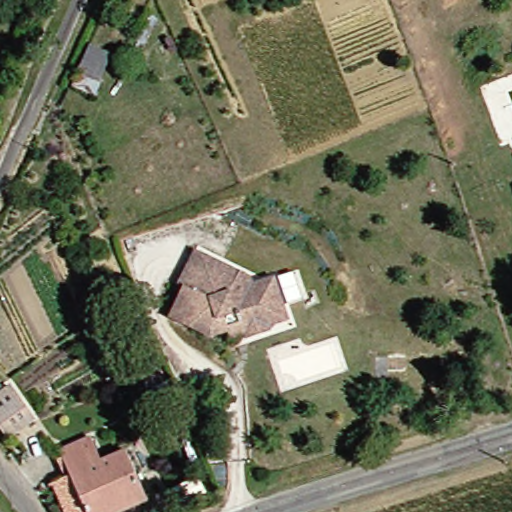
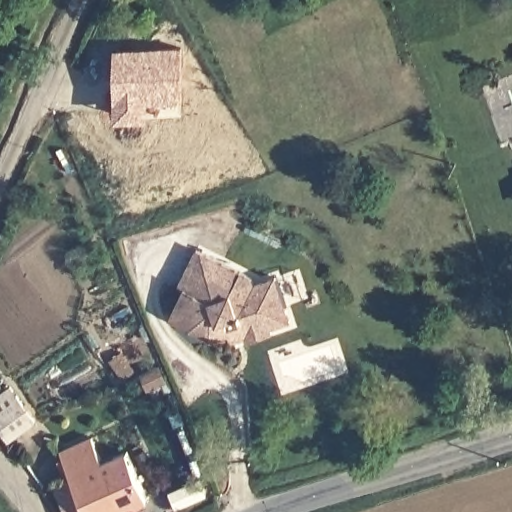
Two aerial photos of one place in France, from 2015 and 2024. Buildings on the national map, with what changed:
new [(185,99),(153,100),(153,118),(118,119),(117,47),(186,46),(185,99)]
unchanged [(96,47),(120,58),(109,82),(101,98),(79,88),(84,73),(96,47)]
unchanged [(243,336),(242,332),(229,335),(227,327),(209,331),(172,314),(186,284),(180,281),(197,247),(254,273),(256,280),(279,275),(286,307),(290,322),(269,327),(269,330),(243,336)]
unchanged [(0,400),(15,391),(38,427),(14,441),(0,417),(0,400)]
unchanged [(65,456),(93,441),(106,464),(128,453),(154,499),(129,512),(97,512),(96,510),(94,512),(73,512),(59,488),(78,477),(65,456)]

